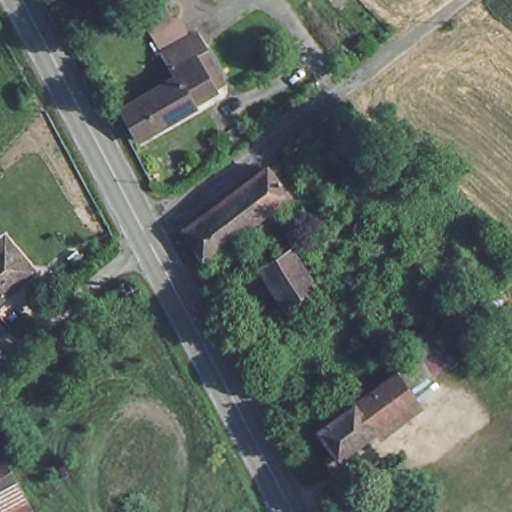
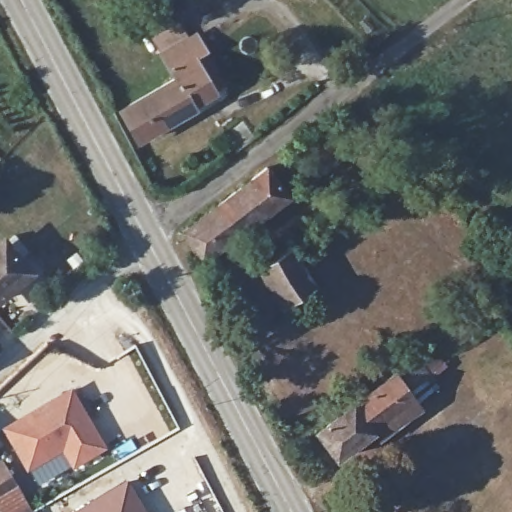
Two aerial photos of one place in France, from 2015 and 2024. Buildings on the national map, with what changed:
unchanged [(194,15),(179,24),(165,0),(166,0),(184,0),(194,15)]
unchanged [(217,88),(211,92),(193,62),(181,69),(168,47),(200,29),(210,47),(230,81),(217,88)]
unchanged [(127,141),(108,111),(181,69),(193,62),(211,92),(127,141)]
unchanged [(213,202),(263,164),(287,195),(236,233),(213,202)]
unchanged [(198,262),(176,230),(213,202),(236,233),(198,262)]
unchanged [(26,266),(0,289),(0,244),(2,242),(26,266)]
unchanged [(316,284),(288,304),(263,269),(292,249),(316,284)]
unchanged [(343,455),(326,430),(409,363),(427,388),(343,455)]
new [(73,387),(109,449),(74,469),(64,453),(28,473),(3,427),(73,387)]
unchanged [(1,512),(0,510),(0,465),(6,461),(33,512),(1,512)]
new [(147,512),(73,512),(128,480),(147,512)]

